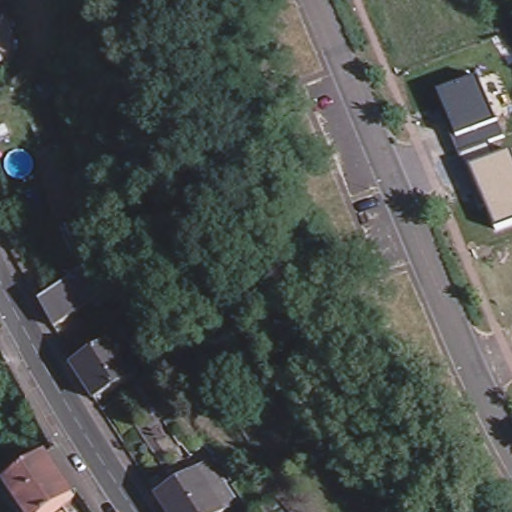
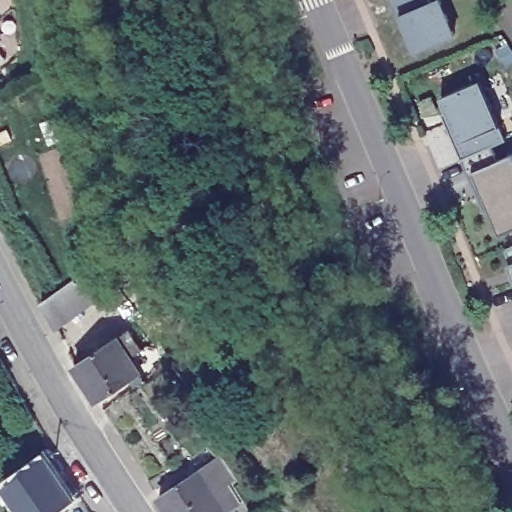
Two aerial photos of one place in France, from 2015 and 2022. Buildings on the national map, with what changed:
new [(454,25),(415,41),(400,6),(397,7),(394,0),(444,0),(454,25)]
unchanged [(490,209),(483,212),(448,125),(452,122),(441,95),(480,80),(498,126),(506,140),(491,146),(496,162),(512,156),(512,227),(498,232),(490,209)]
unchanged [(512,255),(505,239),(512,236),(512,255)]
unchanged [(113,286),(57,328),(43,303),(100,260),(113,286)]
unchanged [(93,400),(73,365),(112,340),(124,333),(135,353),(125,360),(133,374),(93,400)]
unchanged [(158,345),(165,355),(147,366),(145,368),(138,357),(140,356),(158,345)]
unchanged [(52,467),(53,475),(59,484),(55,486),(65,501),(50,511),(49,512),(23,512),(2,480),(21,467),(37,456),(42,452),(52,467)]
unchanged [(242,498),(221,512),(168,512),(157,494),(215,455),(242,498)]

